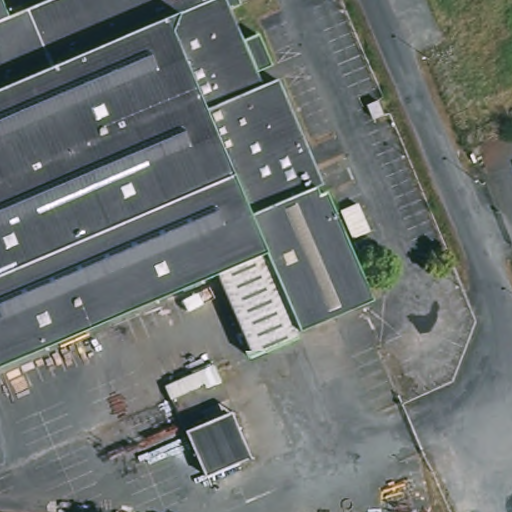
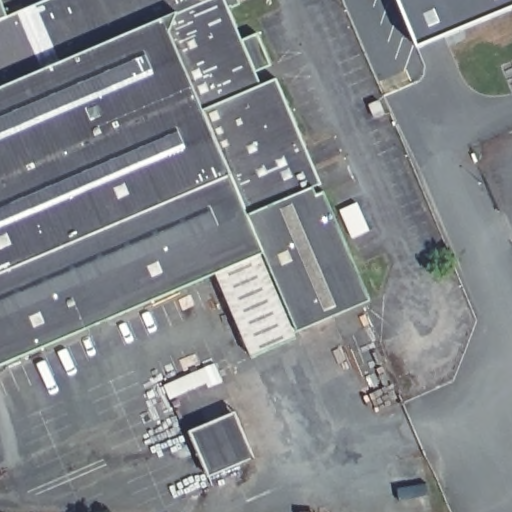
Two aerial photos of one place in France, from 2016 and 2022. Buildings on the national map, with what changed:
unchanged [(8,17),(49,0),(226,0),(243,41),(260,34),(273,65),(257,73),(264,88),(278,81),(374,301),(300,331),(303,340),(254,358),(221,273),(0,367),(0,0),(1,0),(8,17)]
new [(397,0),(512,0),(512,8),(417,47),(397,0)]
unchanged [(236,414),(254,462),(211,479),(192,430),(236,414)]

